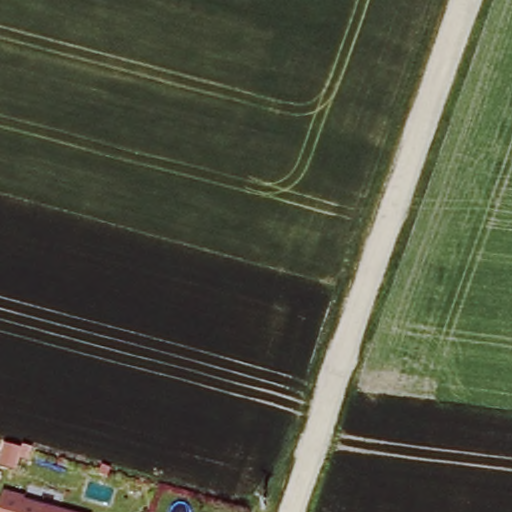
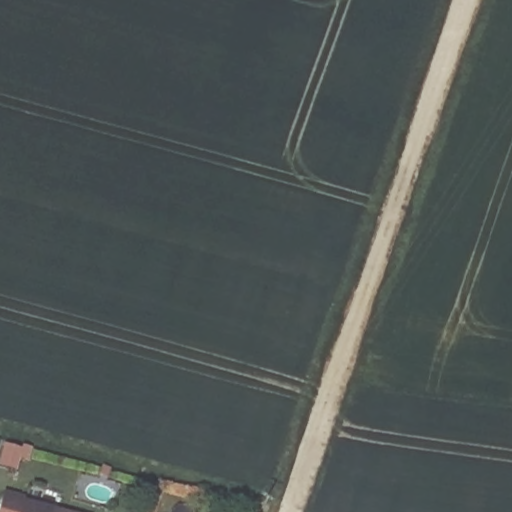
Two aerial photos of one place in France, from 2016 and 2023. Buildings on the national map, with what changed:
unchanged [(25,502),(65,512),(0,512),(0,511),(5,493),(26,498),(25,502)]

